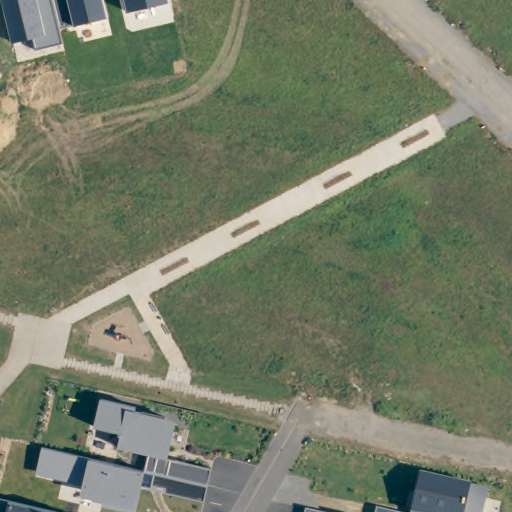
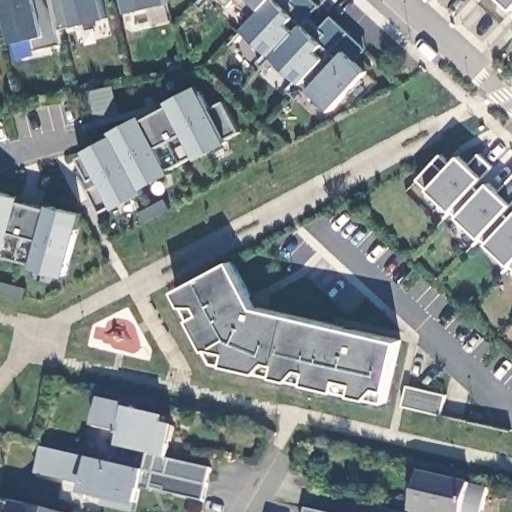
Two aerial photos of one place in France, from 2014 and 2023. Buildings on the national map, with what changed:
unchanged [(101,0),(105,19),(74,26),(57,30),(60,45),(36,50),(35,38),(13,44),(2,0),(101,0)]
unchanged [(168,0),(169,4),(129,13),(126,0),(168,0)]
new [(223,0),(232,0),(227,5),(223,0)]
new [(302,83),(244,30),(255,16),(236,0),(289,0),(291,2),(293,0),(314,0),(320,5),(307,17),(319,29),(331,15),(367,49),(354,60),(367,71),(331,109),(310,89),(302,83)]
new [(512,0),(512,9),(502,0),(512,0)]
new [(112,84),(120,112),(95,119),(88,90),(112,84)]
new [(84,151),(113,135),(110,131),(141,115),(145,119),(169,105),(166,102),(199,85),(210,110),(210,108),(224,101),(240,132),(233,136),(231,133),(225,135),(230,142),(197,160),(195,155),(171,170),(173,172),(144,189),(145,192),(115,209),(84,151)]
new [(488,244),(492,240),(485,234),(481,237),(458,216),(461,214),(455,207),(452,210),(430,190),(431,187),(419,179),(441,155),(454,164),(460,156),(470,165),(480,155),(492,166),(482,177),(475,185),(482,191),(490,184),(500,193),(512,178),(512,203),(511,204),(503,212),(511,219),(512,217),(512,263),(511,265),(488,244)]
new [(20,196),(19,201),(47,209),(49,204),(84,213),(65,276),(32,267),(34,263),(5,256),(5,260),(0,259),(0,191),(20,196)]
new [(368,397),(352,393),(336,389),(305,381),(290,378),(273,375),(257,370),(223,363),(212,360),(206,348),(189,317),(182,303),(174,289),(230,259),(255,305),(399,338),(388,388),(385,400),(368,397)]
new [(407,385),(447,395),(442,415),(402,406),(407,385)]
unchanged [(155,474),(146,471),(145,471),(152,455),(117,448),(121,433),(94,428),(101,400),(135,407),(135,411),(176,422),(168,460),(210,470),(204,502),(150,491),(155,474)]
unchanged [(43,448),(90,459),(145,472),(136,508),(135,512),(119,512),(102,508),(108,501),(81,496),(84,486),(36,475),(43,448)]
unchanged [(483,512),(412,512),(421,473),(471,485),(488,488),(483,512)]
unchanged [(8,503),(48,512),(0,512),(0,501),(8,503)]
unchanged [(377,509),(392,512),(377,512),(377,509)]
unchanged [(307,510),(315,512),(307,512),(307,510)]

